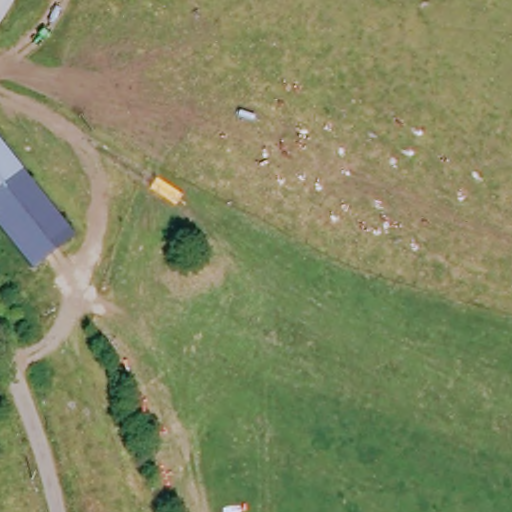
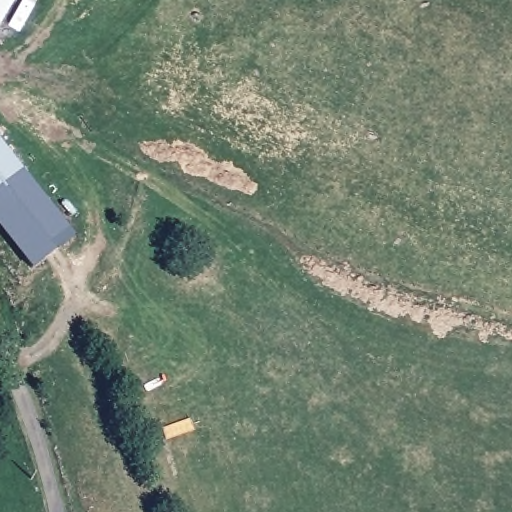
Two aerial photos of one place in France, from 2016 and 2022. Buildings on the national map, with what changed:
unchanged [(0,32),(0,0),(14,0),(0,32)]
unchanged [(26,274),(0,241),(0,155),(67,244),(26,274)]

